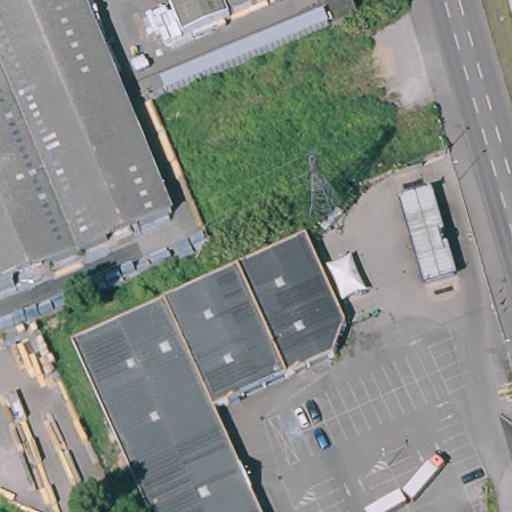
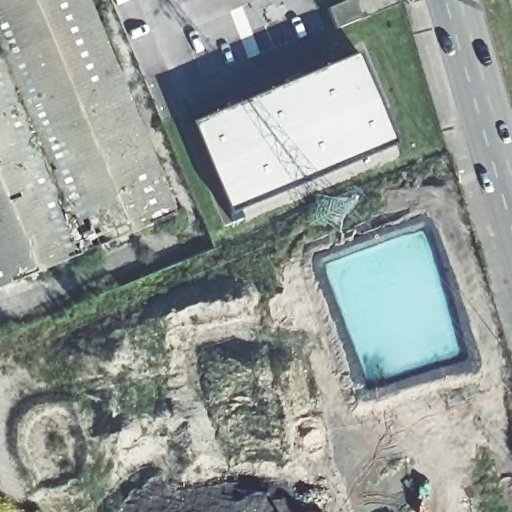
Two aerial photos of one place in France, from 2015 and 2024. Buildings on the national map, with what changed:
unchanged [(169,210),(0,279),(0,0),(80,0),(92,28),(169,210)]
demolished [(224,7),(229,18),(186,35),(170,0),(221,0),(224,7)]
demolished [(225,6),(224,7),(221,0),(240,0),(225,6)]
new [(335,30),(327,10),(350,0),(352,0),(360,20),(335,30)]
demolished [(364,24),(342,34),(332,10),(355,1),(364,24)]
demolished [(390,113),(386,117),(395,137),(324,166),(229,205),(189,111),(267,80),(365,39),(390,113)]
new [(395,143),(230,213),(190,124),(359,55),(395,143)]
demolished [(335,354),(277,379),(212,408),(230,450),(258,512),(145,512),(142,506),(69,337),(195,284),(307,233),(346,319),(335,354)]

